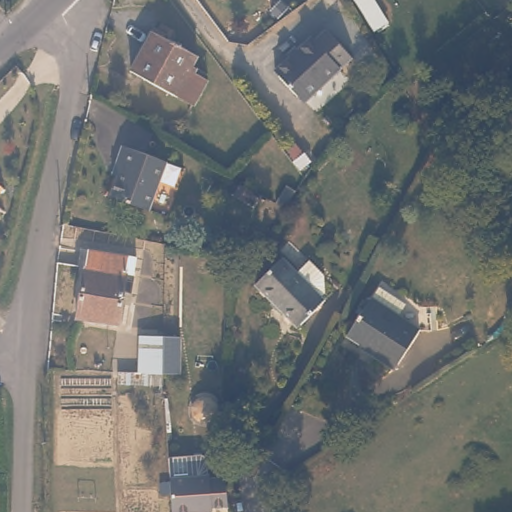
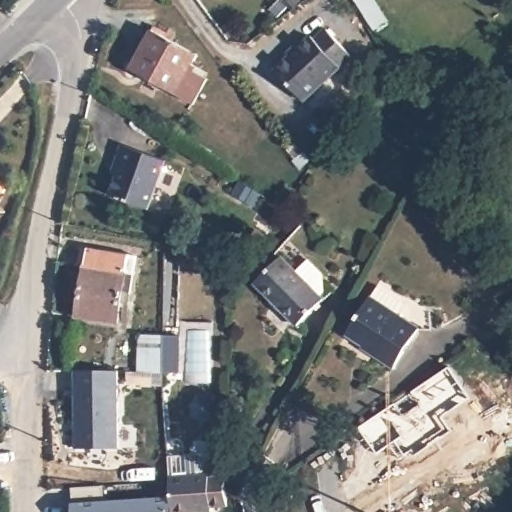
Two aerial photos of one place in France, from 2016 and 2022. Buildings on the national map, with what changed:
unchanged [(360,5),(357,0),(364,0),(360,5)]
unchanged [(192,47),(188,56),(203,63),(200,70),(204,72),(192,97),(127,65),(147,24),(192,47)]
unchanged [(350,57),(301,103),(273,73),(310,38),(312,41),(324,29),(350,57)]
unchanged [(168,159),(154,206),(116,195),(121,177),(115,175),(120,160),(125,145),(168,159)]
unchanged [(4,184),(0,189),(0,181),(4,184)]
unchanged [(86,319),(92,269),(86,266),(89,251),(132,256),(141,258),(135,293),(128,292),(124,323),(86,319)]
unchanged [(334,292),(310,323),(262,286),(286,255),(334,292)]
unchanged [(424,317),(400,358),(382,347),(384,345),(351,325),(372,286),(424,317)]
new [(138,373),(139,333),(183,335),(182,374),(138,373)]
demolished [(156,336),(154,366),(142,366),(144,335),(156,336)]
new [(74,370),(119,370),(119,428),(130,428),(129,446),(118,446),(118,449),(75,449),(74,370)]
unchanged [(228,504),(208,508),(208,511),(201,512),(173,512),(169,479),(168,459),(193,455),(198,458),(200,474),(202,474),(202,477),(224,473),(226,491),(228,504)]
new [(72,512),(72,502),(72,487),(105,485),(106,500),(172,495),(174,512),(72,512)]

